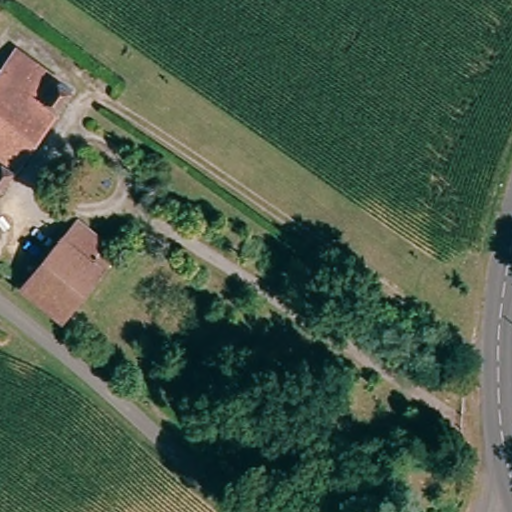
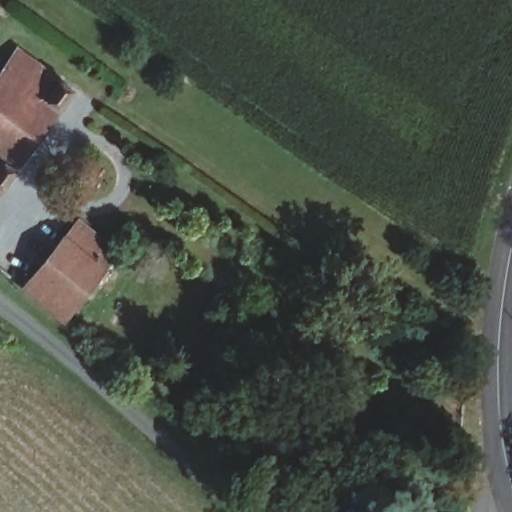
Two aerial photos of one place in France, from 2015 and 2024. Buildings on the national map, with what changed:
unchanged [(23,45),(76,84),(69,93),(9,176),(0,188),(0,81),(23,45)]
unchanged [(85,219),(89,223),(120,255),(102,273),(68,239),(85,219)]
unchanged [(65,235),(68,239),(102,273),(55,323),(16,287),(65,235)]

